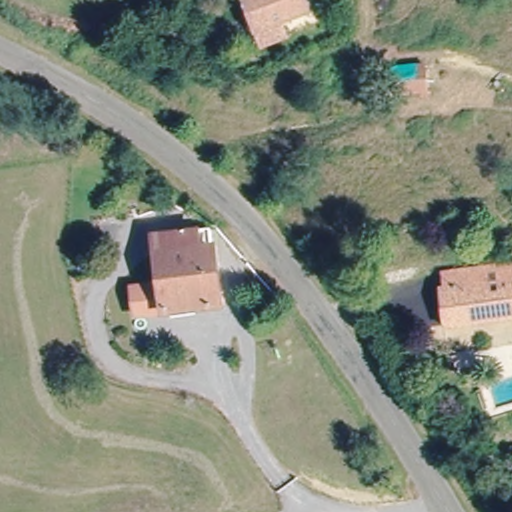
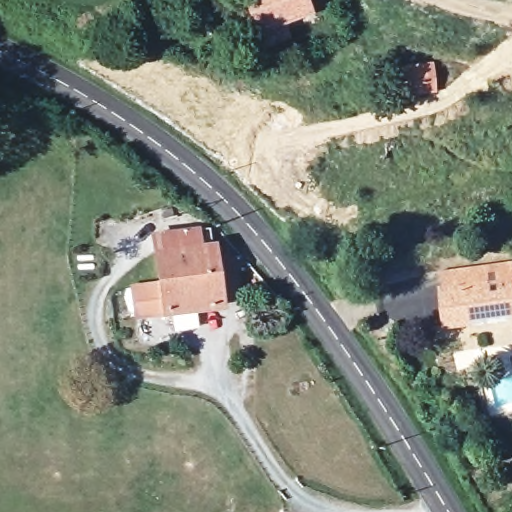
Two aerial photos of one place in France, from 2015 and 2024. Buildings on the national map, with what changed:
unchanged [(312,9),(264,25),(255,29),(245,0),(310,0),(312,9)]
unchanged [(386,91),(382,67),(386,67),(417,63),(420,83),(421,88),(386,91)]
unchanged [(220,284),(167,289),(160,244),(213,238),(220,284)]
unchanged [(441,281),(512,270),(512,311),(447,321),(441,281)]
unchanged [(140,318),(138,291),(167,289),(220,284),(224,284),(227,309),(140,318)]

